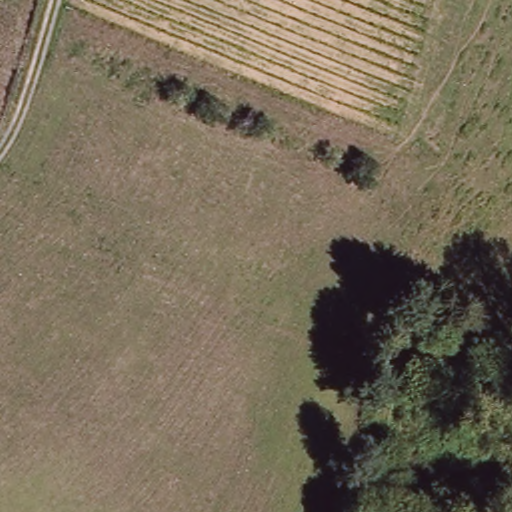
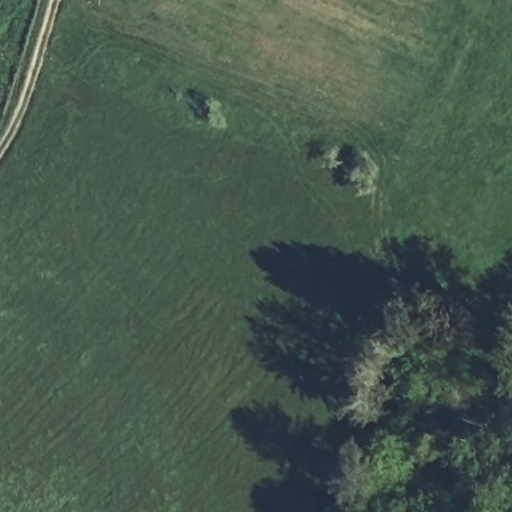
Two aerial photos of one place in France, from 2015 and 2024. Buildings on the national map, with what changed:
[]

